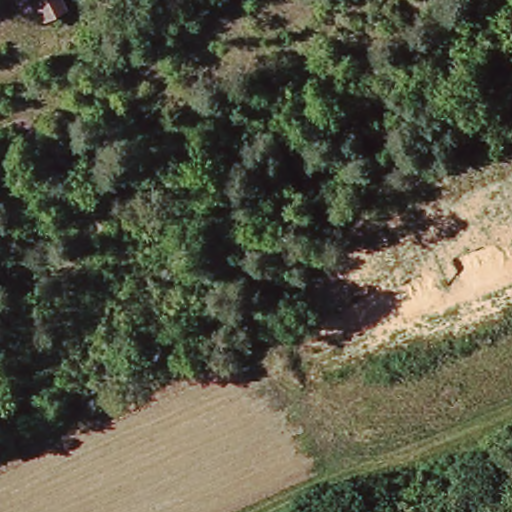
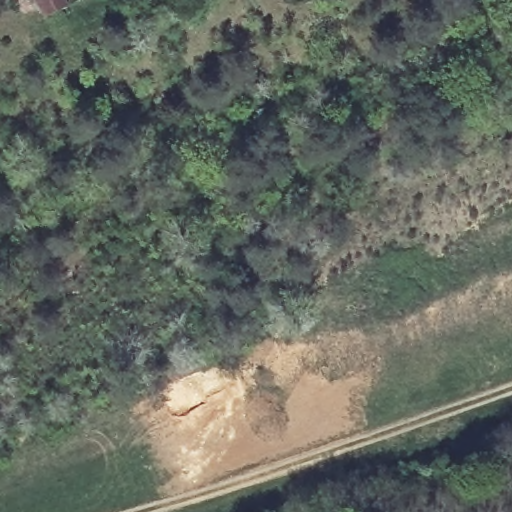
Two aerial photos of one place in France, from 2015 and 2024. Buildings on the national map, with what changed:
unchanged [(42,20),(31,0),(58,0),(63,8),(42,20)]

